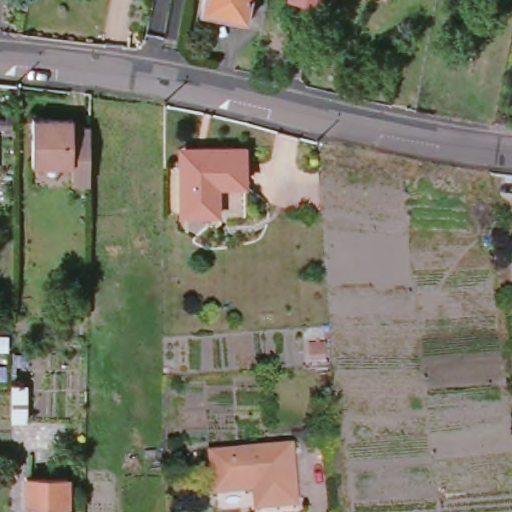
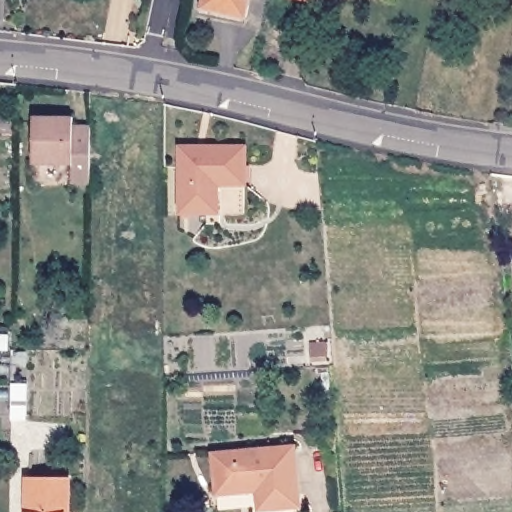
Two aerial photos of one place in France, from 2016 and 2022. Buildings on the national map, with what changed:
unchanged [(201,10),(203,0),(250,0),(246,20),(201,10)]
unchanged [(321,5),(300,0),(322,0),(321,5)]
unchanged [(93,183),(76,183),(76,164),(38,164),(38,117),(76,118),(76,127),(93,127),(93,183)]
unchanged [(210,212),(183,212),(183,154),(210,154),(210,147),(248,147),(248,183),(221,184),(221,212),(210,212)]
unchanged [(265,492),(221,495),(219,458),(299,452),(304,509),(266,512),(265,492)]
unchanged [(68,479),(68,512),(27,512),(28,479),(68,479)]

